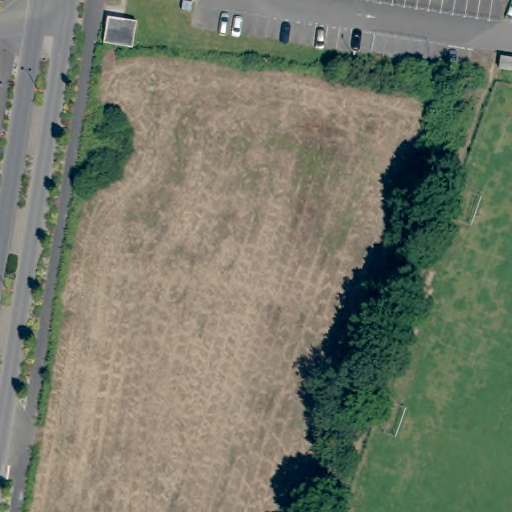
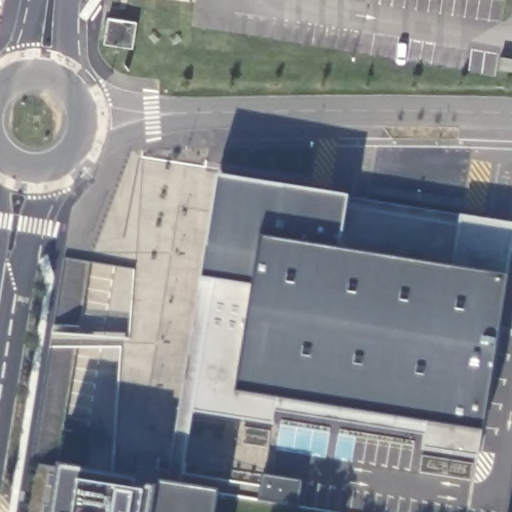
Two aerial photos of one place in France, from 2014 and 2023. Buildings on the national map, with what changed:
unchanged [(110,18),(140,21),(137,46),(132,47),(106,42),(110,18)]
new [(422,451),(425,435),(276,413),(273,425),(177,411),(216,179),(512,223),(512,246),(477,457),(422,451)]
new [(50,512),(57,471),(139,482),(217,494),(213,512),(50,512)]
new [(260,476),(300,482),(296,508),(256,502),(260,476)]

